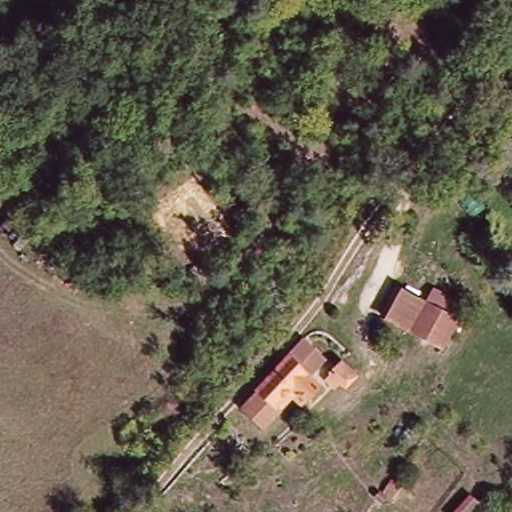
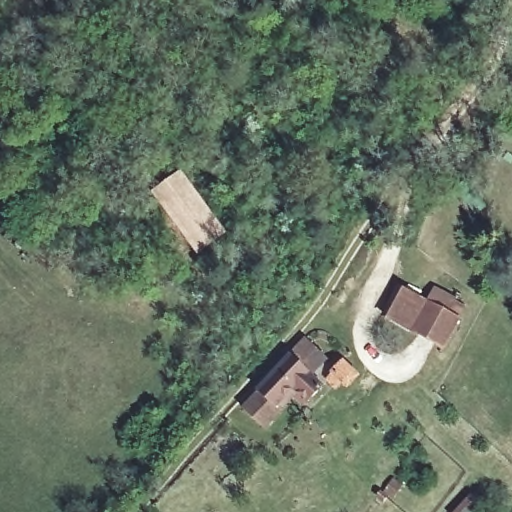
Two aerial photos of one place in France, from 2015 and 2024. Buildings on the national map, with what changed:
new [(229,237),(198,257),(150,191),(181,170),(229,237)]
unchanged [(59,194),(76,207),(67,219),(49,208),(59,194)]
unchanged [(464,317),(433,355),(384,315),(404,290),(423,302),(435,291),(464,317)]
unchanged [(296,403),(263,435),(239,409),(306,340),(327,359),(316,380),(324,390),(306,410),(296,403)]
unchanged [(344,381),(335,391),(325,382),(334,372),(344,381)]

